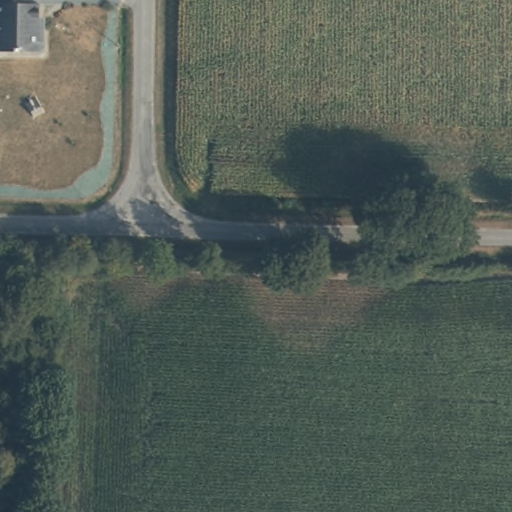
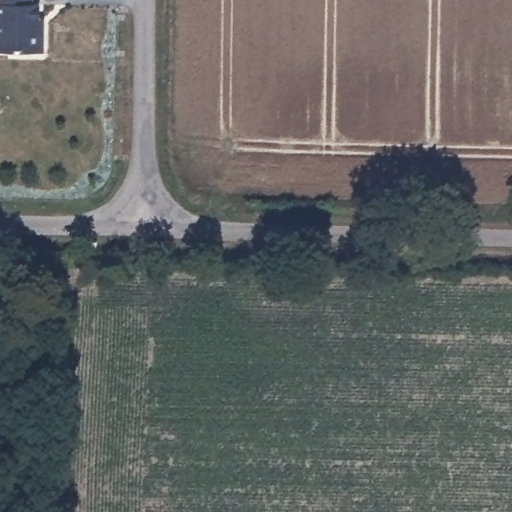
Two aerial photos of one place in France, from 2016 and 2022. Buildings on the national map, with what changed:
unchanged [(40,17),(44,22),(44,47),(0,46),(0,0),(40,0),(40,17)]

